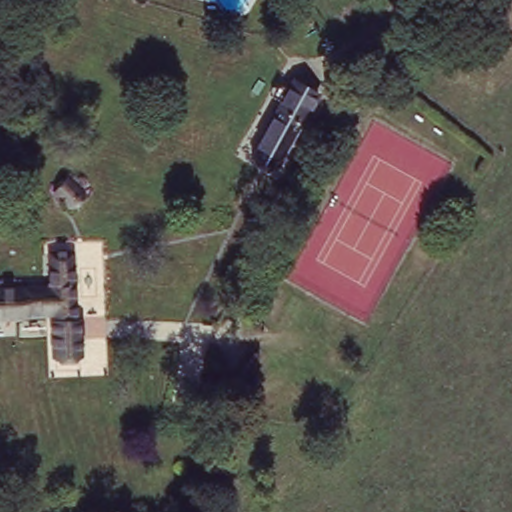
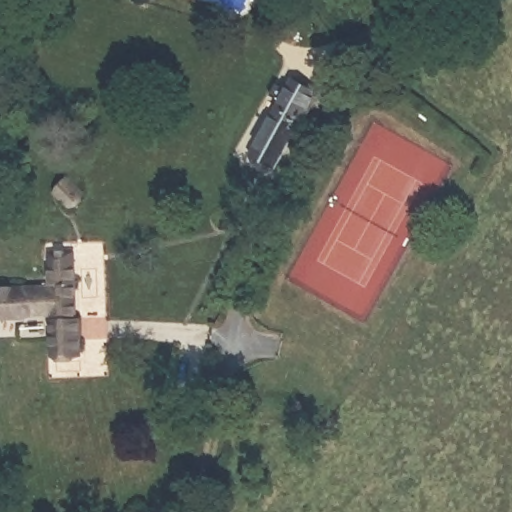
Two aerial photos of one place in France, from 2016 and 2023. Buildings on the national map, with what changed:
unchanged [(295,78),(320,96),(305,121),(300,119),(273,160),(252,147),(295,78)]
unchanged [(87,198),(68,214),(49,190),(69,175),(87,198)]
unchanged [(55,310),(23,310),(23,284),(55,285),(54,249),(72,249),(74,308),(81,308),(82,354),(56,354),(55,310)]
unchanged [(55,310),(55,319),(0,321),(0,285),(23,284),(23,310),(55,310)]

